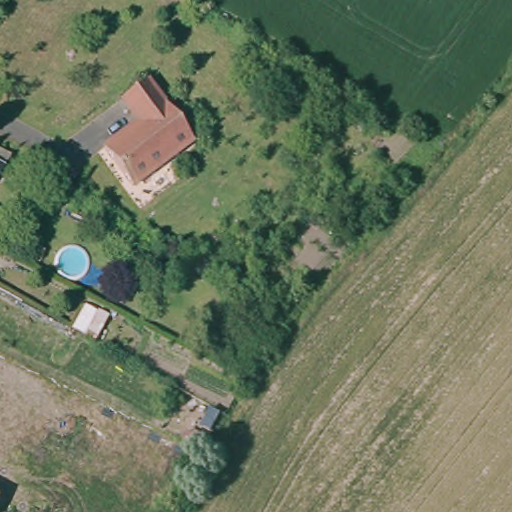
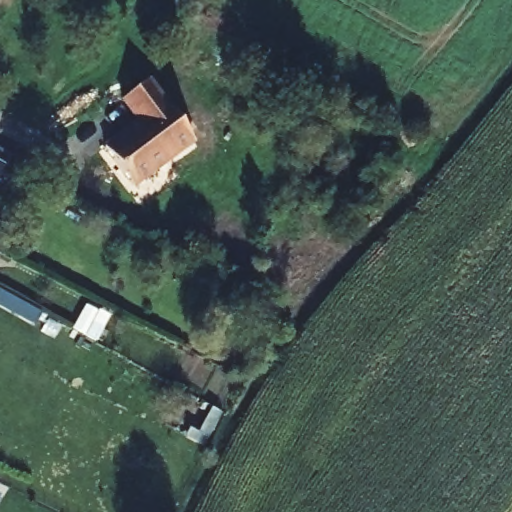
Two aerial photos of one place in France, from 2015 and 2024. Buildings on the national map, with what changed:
unchanged [(103,144),(123,130),(124,132),(139,123),(121,97),(146,79),(191,142),(133,184),(103,144)]
unchanged [(15,155),(8,169),(0,181),(0,146),(15,155)]

